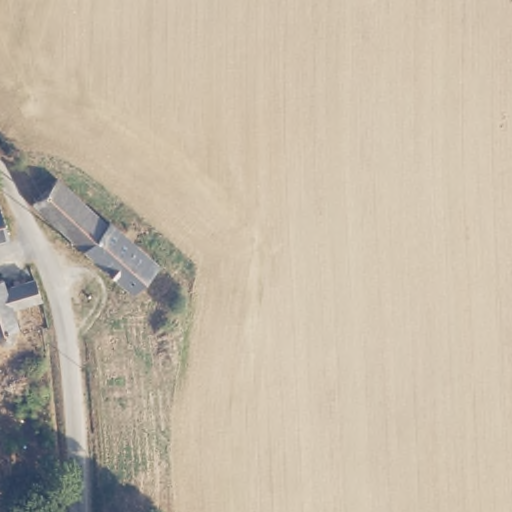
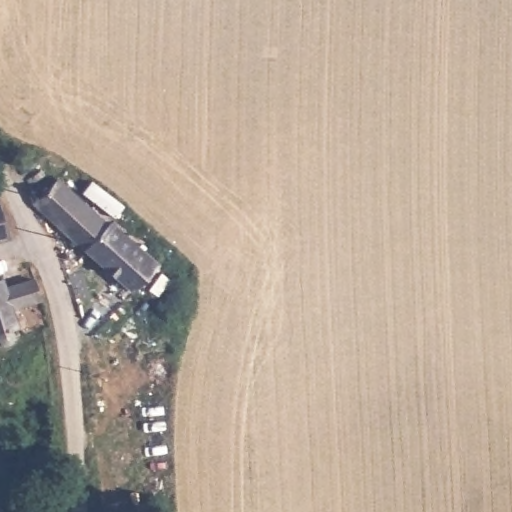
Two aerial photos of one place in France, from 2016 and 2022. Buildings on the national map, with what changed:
unchanged [(53,179),(155,265),(134,291),(33,202),(53,179)]
unchanged [(0,241),(0,214),(7,240),(0,241)]
unchanged [(39,275),(47,296),(41,298),(15,304),(20,323),(14,325),(16,331),(15,336),(13,339),(10,341),(5,343),(2,342),(0,341),(0,277),(5,276),(8,283),(34,276),(39,275)]

